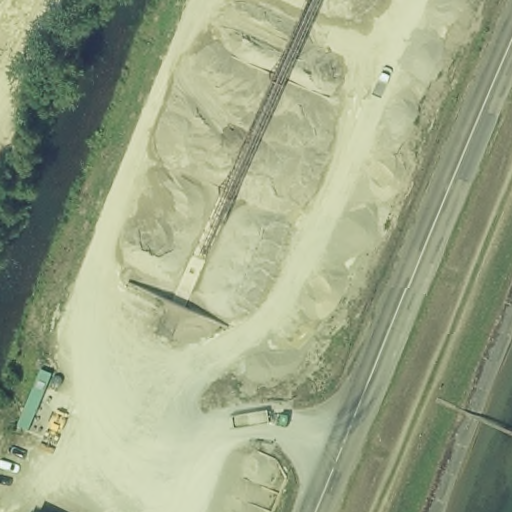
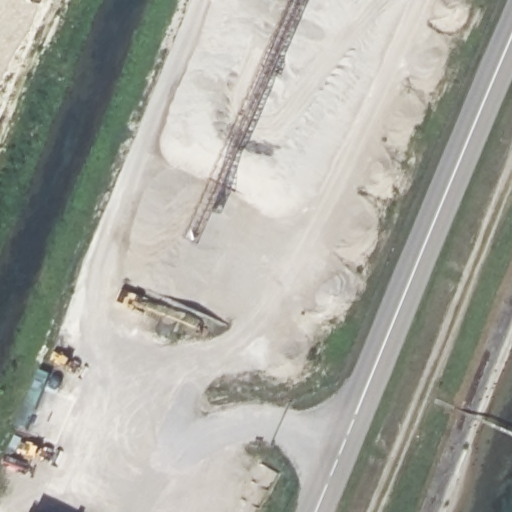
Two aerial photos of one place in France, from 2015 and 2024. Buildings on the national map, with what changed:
[]

